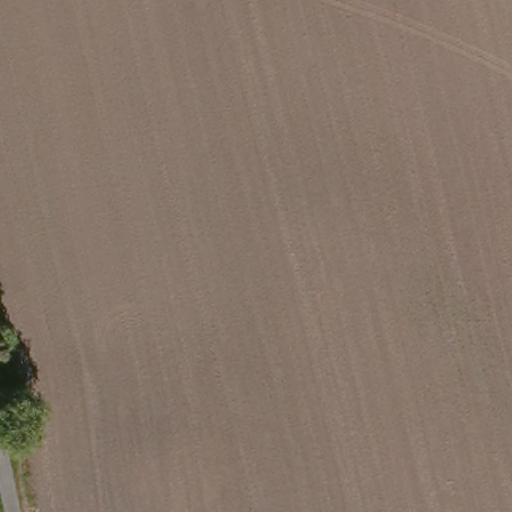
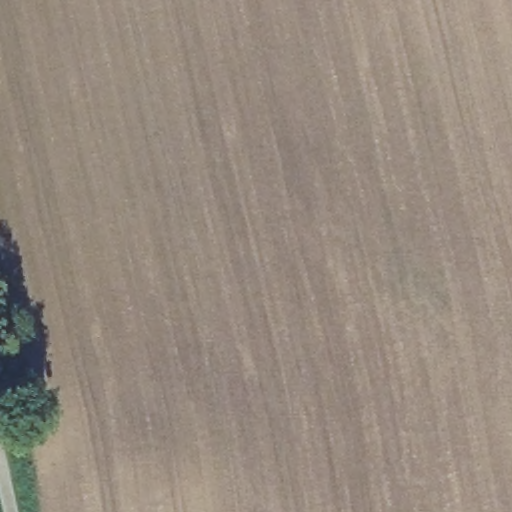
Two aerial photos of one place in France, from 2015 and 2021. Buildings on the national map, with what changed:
[]

